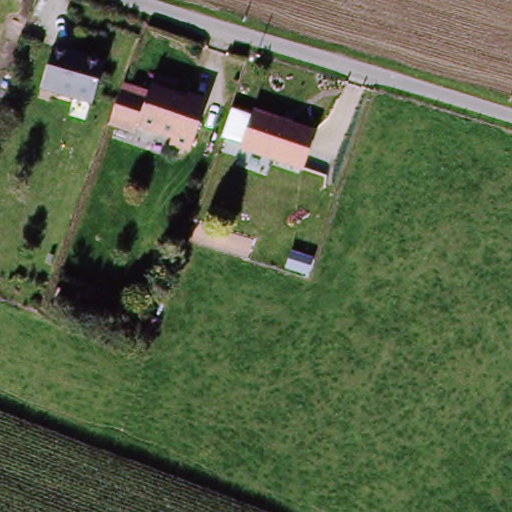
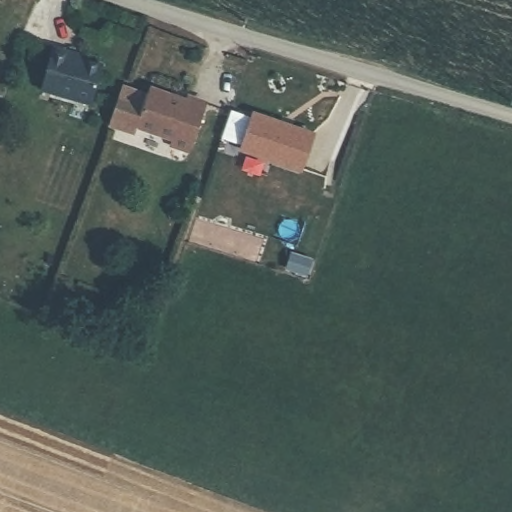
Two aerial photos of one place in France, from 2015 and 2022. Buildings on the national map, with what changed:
unchanged [(69,52),(105,62),(94,101),(43,86),(55,45),(70,48),(69,52)]
unchanged [(196,90),(214,97),(196,145),(178,137),(179,134),(144,120),(141,127),(114,117),(128,79),(156,88),(158,81),(194,95),(196,90)]
unchanged [(251,119),(253,115),(309,132),(299,168),(241,152),(243,147),(218,141),(219,140),(226,116),(227,116),(228,112),(251,119)]

